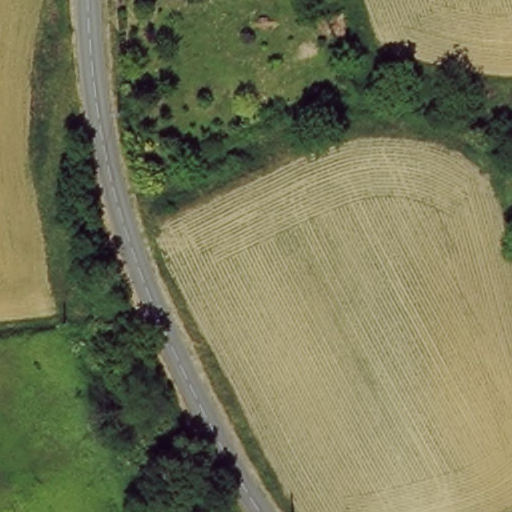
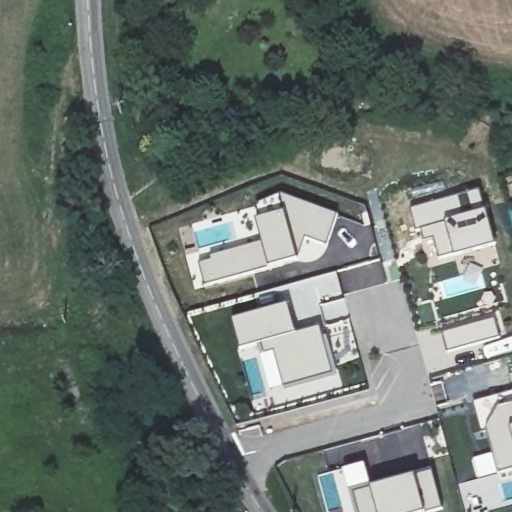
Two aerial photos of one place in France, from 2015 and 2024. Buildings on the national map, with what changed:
new [(481,193),(488,215),(497,246),(455,257),(442,260),(436,240),(428,243),(425,233),(419,234),(414,213),(481,193)]
new [(278,213),(283,197),(338,216),(326,250),(318,259),(308,262),(307,258),(268,271),(261,241),(257,221),(278,213)]
new [(261,241),(268,271),(201,288),(193,261),(261,241)]
new [(291,307),(297,335),(321,328),(334,374),(285,389),(276,354),(266,357),(263,345),(242,351),(236,323),(291,307)]
new [(496,320),(501,338),(451,353),(447,335),(496,320)]
new [(512,393),(512,472),(499,476),(487,431),(483,434),(475,404),(512,393)]
new [(374,490),(416,479),(434,472),(445,510),(435,512),(361,512),(356,494),(374,490)]

